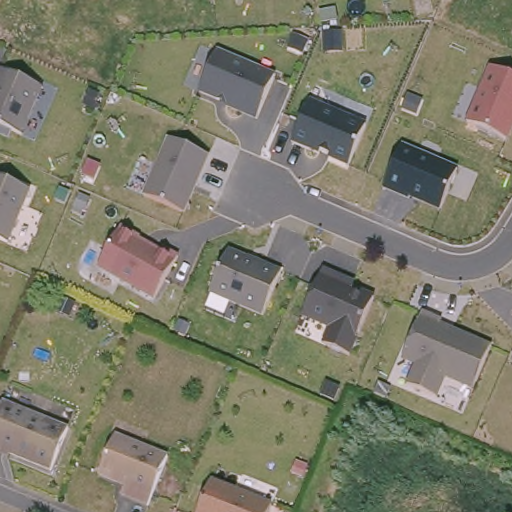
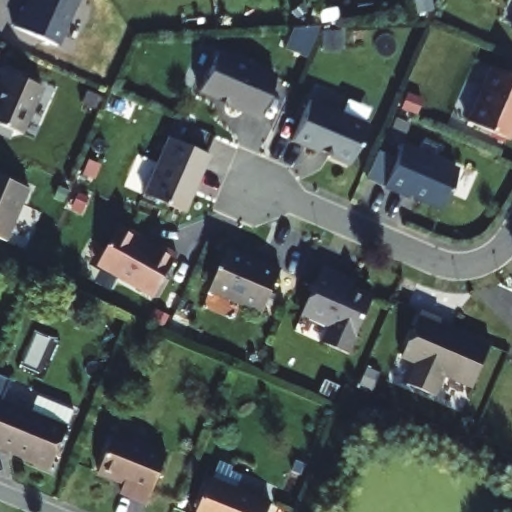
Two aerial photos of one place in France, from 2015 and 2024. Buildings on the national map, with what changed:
new [(79,0),(58,46),(15,26),(26,0),(79,0)]
unchanged [(257,118),(226,104),(227,101),(199,89),(217,49),(275,75),(257,118)]
unchanged [(20,131),(0,122),(0,70),(2,66),(41,84),(20,131)]
unchanged [(492,68),(512,77),(512,129),(507,141),(467,124),(492,68)]
unchanged [(285,139),(304,96),(361,119),(343,164),(285,139)]
unchanged [(138,194),(162,135),(206,153),(182,212),(138,194)]
unchanged [(380,191),(402,143),(453,163),(435,212),(380,191)]
unchanged [(28,187),(5,239),(0,237),(0,174),(28,187)]
unchanged [(137,235),(136,237),(157,249),(160,245),(175,254),(152,296),(95,263),(118,224),(137,235)]
unchanged [(261,314),(208,291),(227,249),(257,262),(257,261),(280,271),(261,314)]
unchanged [(347,355),(322,343),(329,327),(301,314),(321,269),(341,278),(339,283),(372,298),(347,355)]
unchanged [(441,322),(438,329),(450,334),(451,331),(490,348),(472,390),(444,378),(435,399),(406,386),(415,365),(401,359),(421,313),(441,322)]
new [(7,372),(0,388),(0,369),(7,372)]
unchanged [(64,421),(46,463),(0,442),(0,393),(64,421)]
unchanged [(163,449),(143,496),(116,485),(120,476),(95,465),(110,426),(163,449)]
unchanged [(267,497),(260,512),(197,512),(190,509),(206,471),(267,497)]

